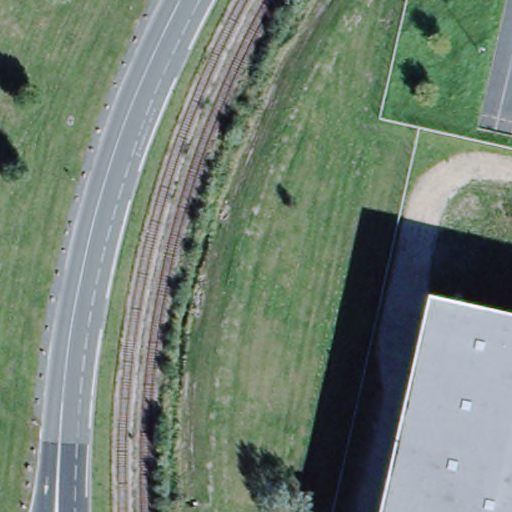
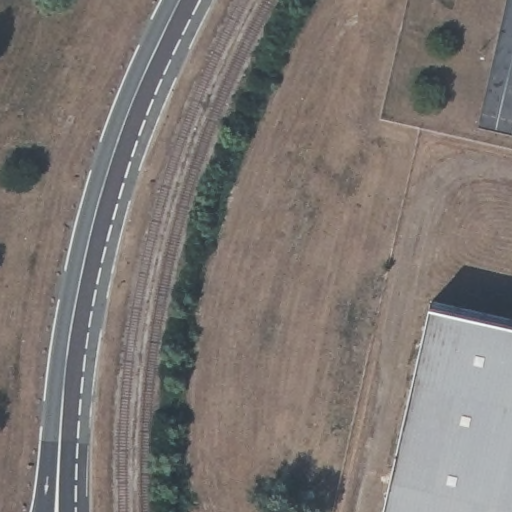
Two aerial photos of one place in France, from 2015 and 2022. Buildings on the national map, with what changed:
unchanged [(512,318),(512,512),(382,512),(430,301),(512,318)]

